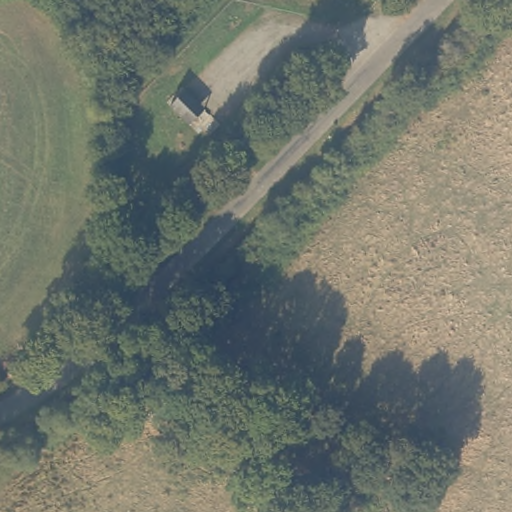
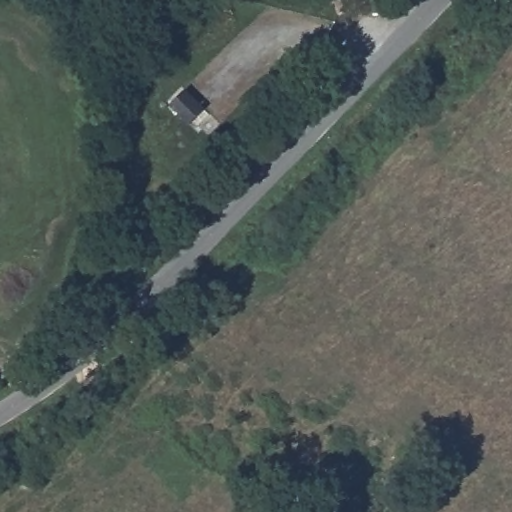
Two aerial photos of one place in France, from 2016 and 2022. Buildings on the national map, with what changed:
unchanged [(188,88),(207,109),(191,124),(172,103),(188,88)]

